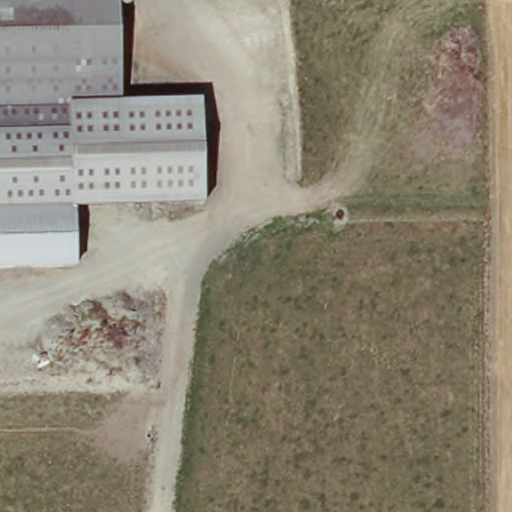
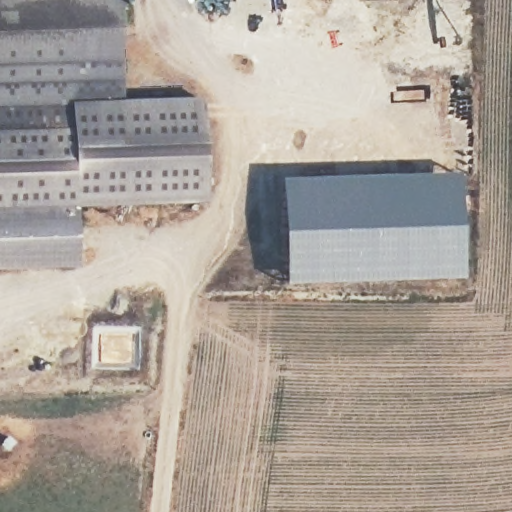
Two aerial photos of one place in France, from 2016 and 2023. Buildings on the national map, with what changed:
unchanged [(0,35),(0,0),(122,0),(123,31),(0,35)]
unchanged [(126,103),(126,104),(85,106),(89,207),(0,210),(0,35),(123,31),(126,103)]
unchanged [(126,104),(126,103),(177,102),(180,201),(89,207),(85,106),(126,104)]
unchanged [(177,102),(203,102),(206,201),(180,201),(177,102)]
new [(462,277),(282,282),(277,178),(457,172),(462,277)]
unchanged [(77,267),(0,270),(0,210),(76,207),(77,267)]

